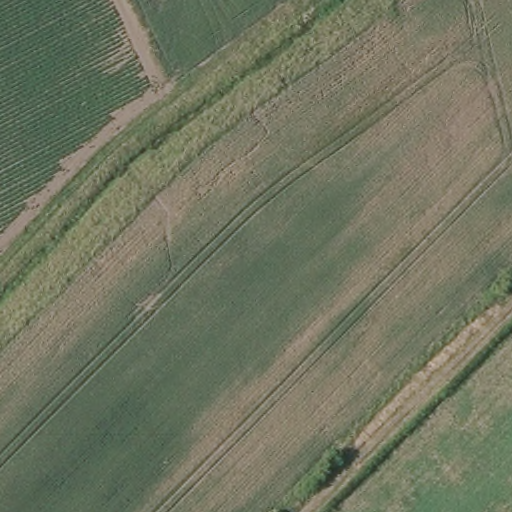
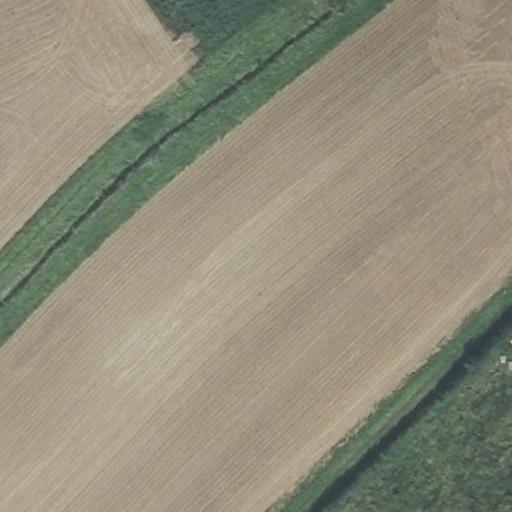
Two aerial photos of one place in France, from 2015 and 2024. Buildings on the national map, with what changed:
[]

